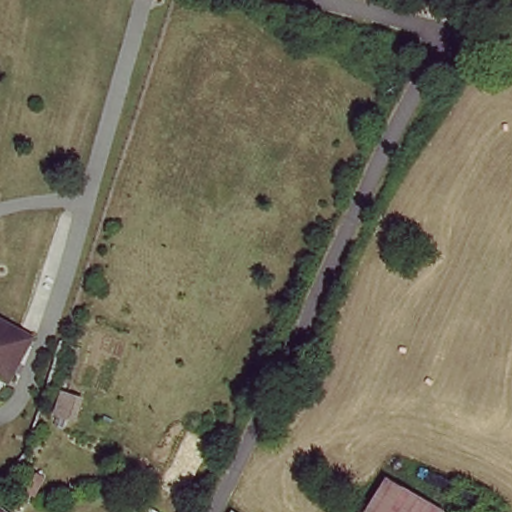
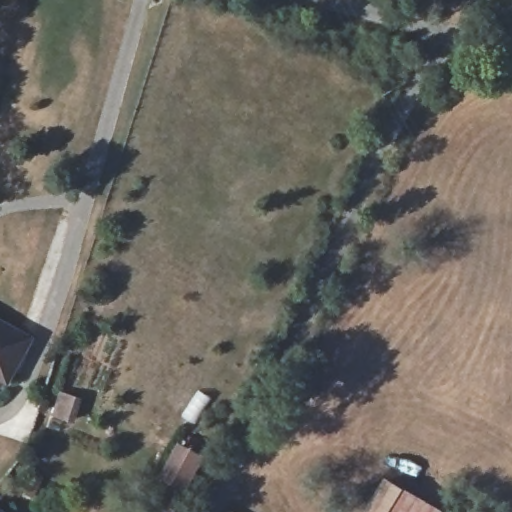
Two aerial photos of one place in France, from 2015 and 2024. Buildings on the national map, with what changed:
unchanged [(3,376),(0,375),(0,320),(26,336),(3,376)]
new [(177,441),(205,456),(185,492),(157,477),(177,441)]
unchanged [(379,473),(410,491),(398,512),(358,512),(379,473)]
unchanged [(433,505),(429,512),(398,512),(410,491),(433,505)]
unchanged [(269,512),(242,512),(247,501),(269,512)]

